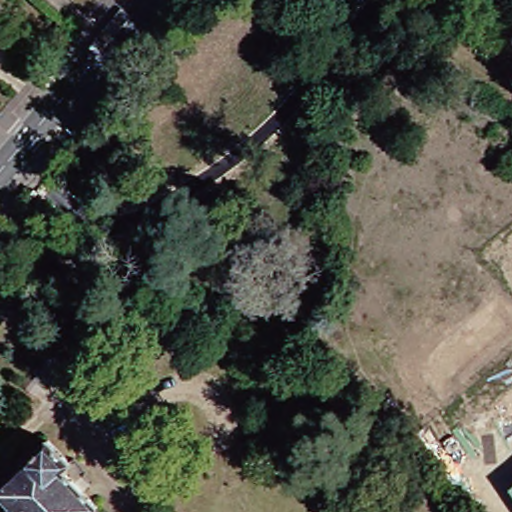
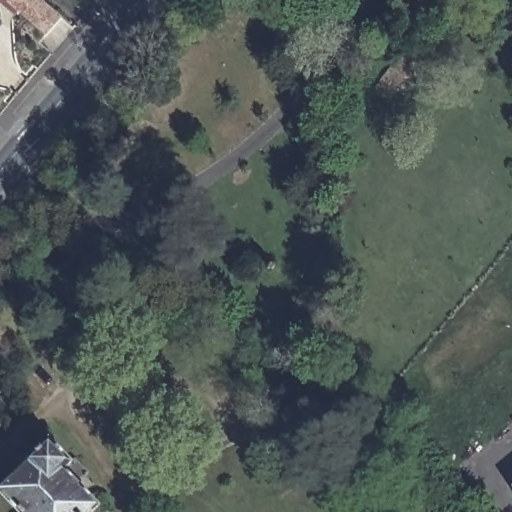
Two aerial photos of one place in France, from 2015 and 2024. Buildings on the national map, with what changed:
new [(16,12),(1,0),(11,0),(20,7),(16,12)]
new [(50,33),(20,7),(11,0),(46,0),(65,15),(50,33)]
unchanged [(424,0),(436,8),(426,23),(414,14),(424,0)]
unchanged [(382,96),(371,89),(398,45),(410,52),(382,96)]
unchanged [(307,335),(292,338),(289,328),(305,324),(307,335)]
unchanged [(0,503),(0,487),(42,442),(64,463),(56,471),(94,508),(90,512),(9,512),(0,503)]
new [(512,486),(512,490),(511,487),(512,486)]

